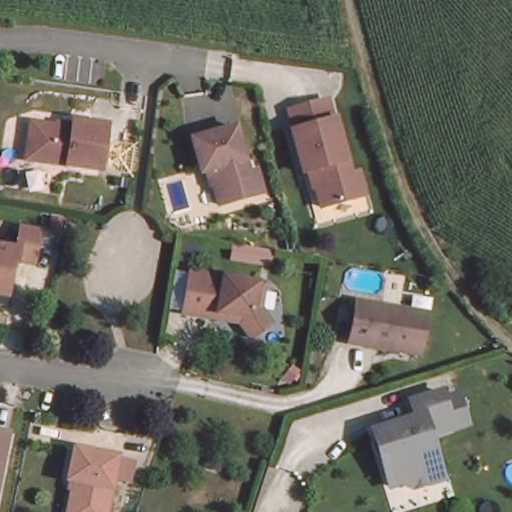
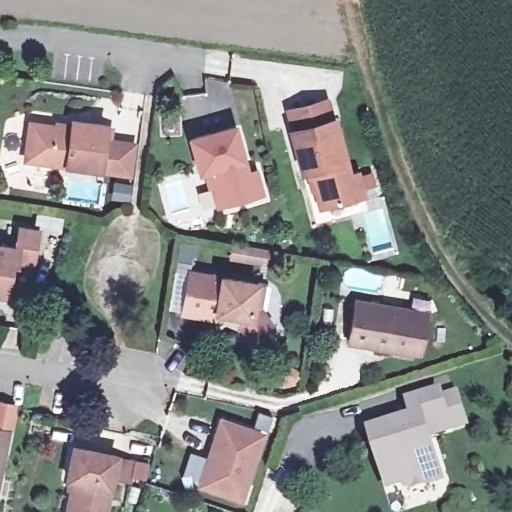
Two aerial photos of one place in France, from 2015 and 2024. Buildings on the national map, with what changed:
unchanged [(350,170),(357,168),(364,191),(320,203),(310,166),(302,168),(291,126),(294,125),(289,106),(327,96),(332,115),(335,114),(350,170)]
unchanged [(35,122),(76,128),(77,120),(111,125),(105,170),(30,159),(35,122)]
unchanged [(217,200),(208,165),(200,167),(191,134),(235,121),(247,168),(255,166),(261,188),(217,200)]
unchanged [(17,229),(35,232),(30,263),(13,260),(13,266),(6,265),(3,273),(7,274),(5,296),(0,295),(0,247),(15,249),(17,229)]
unchanged [(247,334),(230,312),(215,310),(214,316),(180,310),(186,269),(253,280),(260,281),(255,304),(267,320),(247,334)]
unchanged [(351,296),(422,307),(415,348),(345,337),(351,296)]
unchanged [(439,463),(421,468),(425,484),(412,488),(401,483),(389,486),(372,431),(398,423),(409,419),(415,417),(410,401),(441,392),(443,400),(457,395),(466,424),(452,429),(430,435),(439,463)]
new [(218,417),(265,432),(242,501),(195,486),(218,417)]
unchanged [(0,452),(0,427),(5,428),(0,452)]
unchanged [(70,479),(63,478),(69,446),(111,454),(101,512),(63,512),(70,479)]

